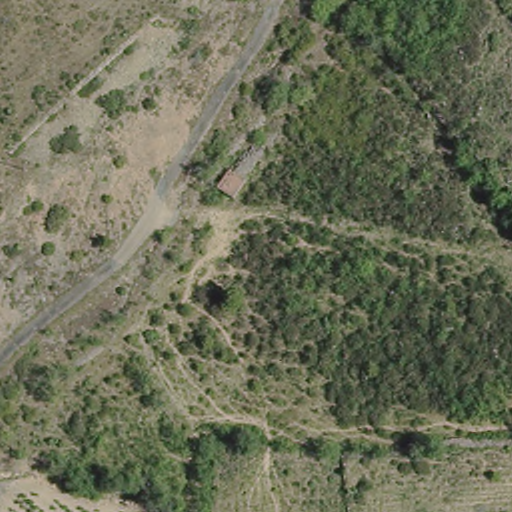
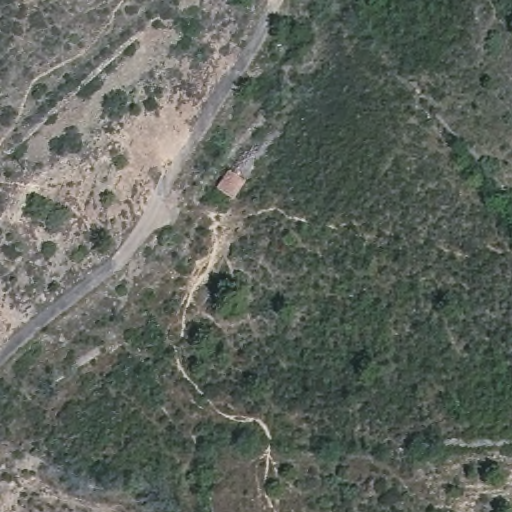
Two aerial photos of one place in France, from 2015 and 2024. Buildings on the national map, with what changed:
unchanged [(231,200),(211,184),(226,162),(246,177),(231,200)]

